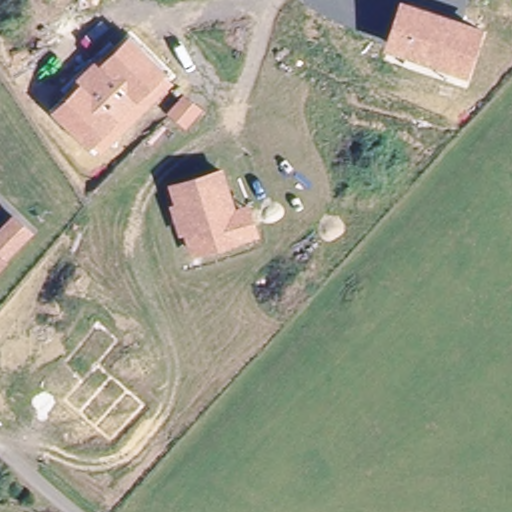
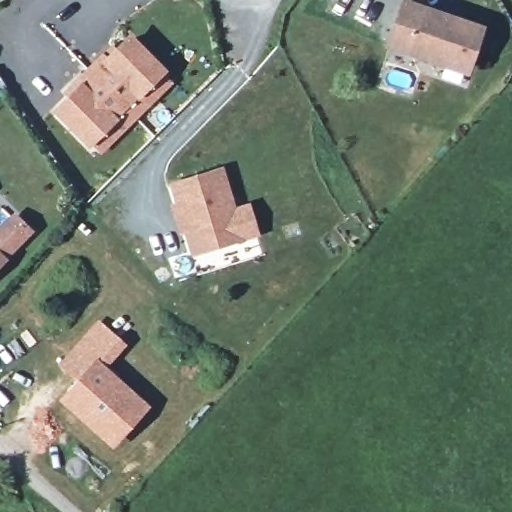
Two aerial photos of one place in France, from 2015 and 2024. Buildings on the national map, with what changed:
unchanged [(485,26),(469,75),(385,48),(400,0),(408,0),(485,26)]
unchanged [(65,91),(108,49),(113,50),(130,35),(167,71),(163,76),(173,85),(102,154),(94,144),(89,149),(53,112),(72,93),(65,91)]
unchanged [(169,185),(223,166),(236,208),(251,204),(260,237),(191,257),(185,235),(179,237),(170,205),(175,204),(169,185)]
unchanged [(18,220),(32,234),(0,266),(0,237),(18,220)]
new [(112,446),(58,399),(76,380),(58,365),(98,320),(119,338),(127,345),(108,370),(148,405),(112,446)]

